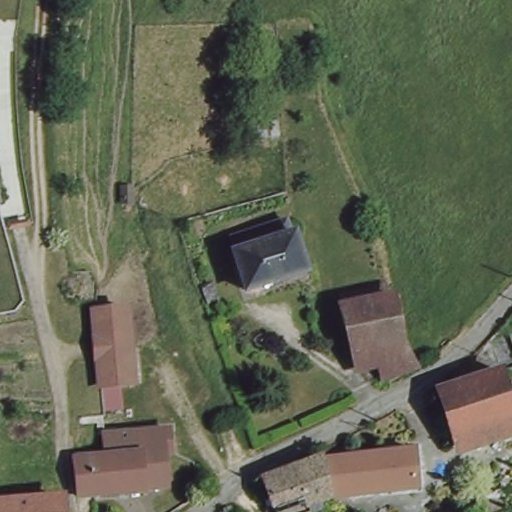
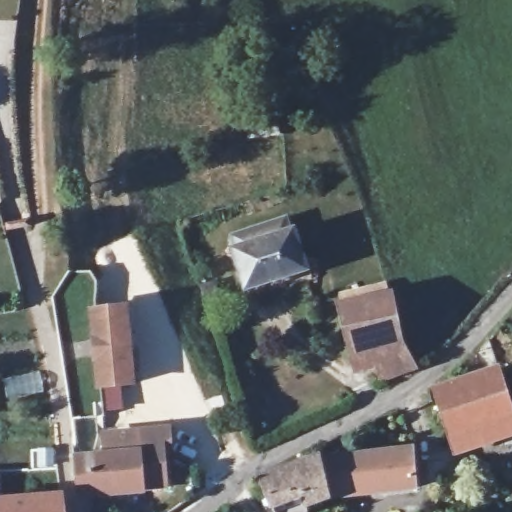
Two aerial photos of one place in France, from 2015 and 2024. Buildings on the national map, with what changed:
unchanged [(250,296),(234,246),(287,226),(303,278),(250,296)]
unchanged [(211,289),(218,287),(222,301),(215,303),(211,289)]
unchanged [(372,360),(350,368),(336,325),(370,313),(367,306),(384,300),(405,350),(372,360)]
unchanged [(126,303),(132,381),(119,384),(122,411),(102,412),(101,388),(95,388),(89,306),(126,303)]
unchanged [(405,350),(416,378),(385,390),(372,360),(405,350)]
unchanged [(440,401),(500,382),(512,426),(512,432),(453,448),(440,401)]
unchanged [(103,435),(168,426),(171,448),(165,449),(170,483),(146,487),(146,489),(80,499),(75,460),(106,456),(103,435)]
unchanged [(297,500),(299,509),(282,512),(267,512),(260,471),(320,461),(405,446),(406,486),(321,496),(310,497),(297,500)]
unchanged [(63,500),(63,502),(64,512),(0,512),(0,503),(63,500)]

